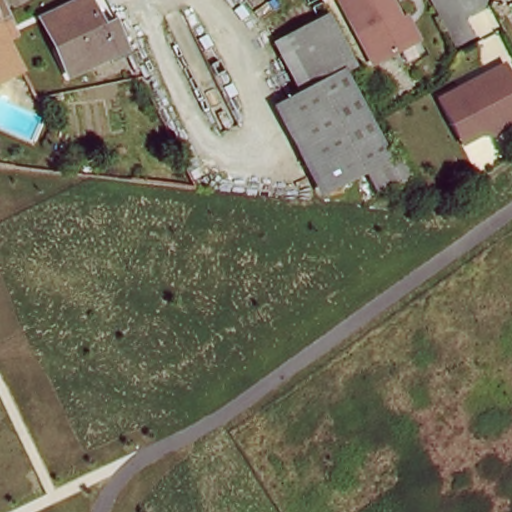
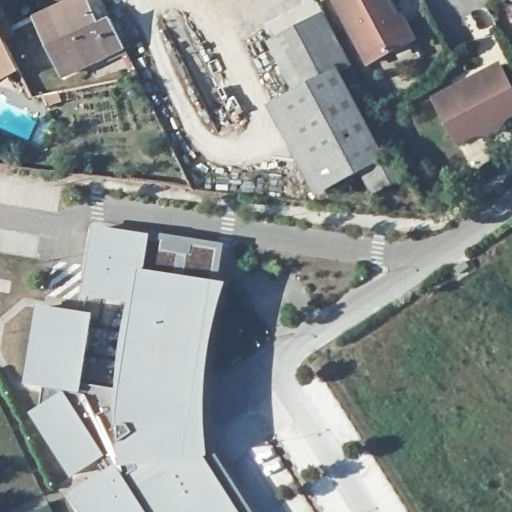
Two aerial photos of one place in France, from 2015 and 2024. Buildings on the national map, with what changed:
unchanged [(118,34),(125,48),(65,78),(53,54),(62,50),(47,18),(83,0),(97,30),(112,22),(118,34)]
unchanged [(332,0),(384,0),(405,39),(365,61),(332,0)]
unchanged [(0,4),(6,16),(0,20),(0,4)]
unchanged [(365,166),(331,185),(320,163),(285,97),(295,91),(270,43),(328,12),(338,31),(347,48),(349,52),(353,60),(340,67),(357,98),(387,155),(400,148),(412,170),(378,189),(365,166)]
unchanged [(10,73),(0,78),(0,31),(19,69),(10,73)]
unchanged [(450,134),(430,99),(495,64),(512,95),(512,112),(502,117),(495,128),(485,134),(472,133),(454,143),(450,134)]
new [(94,316),(83,385),(119,389),(120,371),(124,338),(132,304),(84,296),(96,228),(150,236),(151,233),(224,245),(216,283),(230,285),(219,314),(209,366),(207,406),(210,447),(254,512),(80,512),(70,496),(105,475),(98,463),(72,479),(32,414),(41,408),(44,387),(27,385),(39,306),(94,316)]

